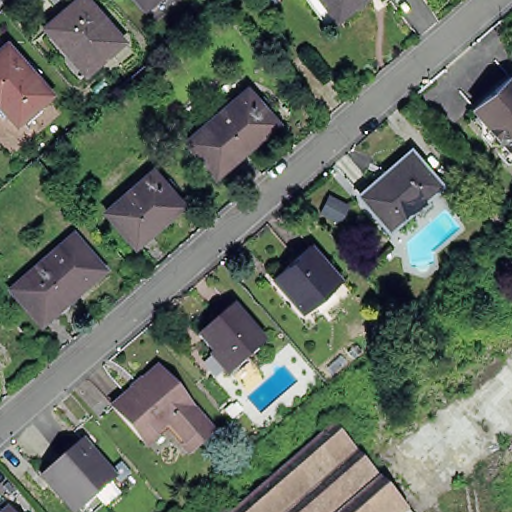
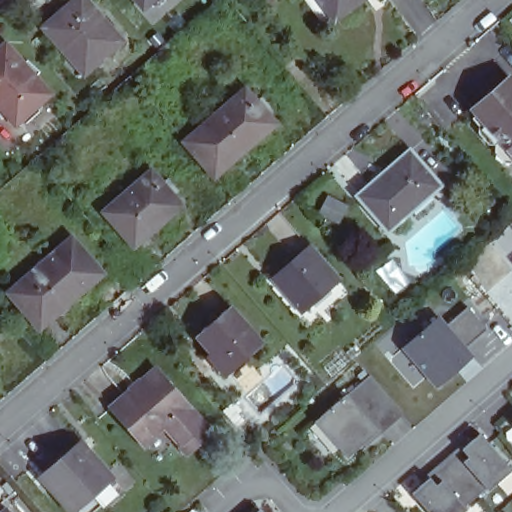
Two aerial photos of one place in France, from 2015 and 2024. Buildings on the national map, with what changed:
unchanged [(44,27),(76,0),(86,0),(122,41),(87,71),(72,54),(70,56),(44,27)]
unchanged [(137,0),(152,0),(143,7),(137,0)]
unchanged [(352,0),(339,10),(329,17),(316,0),(352,0)]
unchanged [(51,99),(16,130),(0,111),(0,53),(6,48),(51,99)]
unchanged [(510,77),(512,79),(512,153),(473,109),(510,77)]
unchanged [(215,176),(185,142),(245,90),(275,122),(215,176)]
unchanged [(388,230),(358,196),(410,151),(440,185),(388,230)]
unchanged [(105,217),(152,176),(181,210),(134,251),(105,217)]
unchanged [(10,292),(72,238),(102,273),(40,327),(10,292)]
unchanged [(309,250),(340,285),(303,317),(273,283),(272,282),(309,250)]
new [(437,388),(400,347),(438,314),(448,324),(467,306),(487,328),(467,347),(475,356),(437,388)]
unchanged [(230,311),(263,348),(230,377),(212,357),(197,341),(230,311)]
demolished [(512,343),(512,435),(440,497),(394,445),(512,343)]
unchanged [(157,372),(212,437),(189,457),(166,430),(143,450),(111,412),(132,394),(140,387),(157,372)]
new [(382,433),(379,431),(347,459),(315,422),(347,393),(370,374),(405,413),(382,433)]
demolished [(408,395),(408,396),(414,402),(381,431),(375,423),(407,396),(408,395)]
demolished [(330,431),(332,430),(333,432),(354,457),(355,457),(356,458),(355,458),(377,482),(379,484),(378,485),(402,512),(237,512),(330,432),(330,431)]
new [(512,468),(512,471),(480,499),(447,462),(480,432),(512,468)]
unchanged [(60,463),(80,446),(112,481),(103,490),(105,491),(93,501),(60,463)]
new [(412,492),(447,462),(480,499),(465,512),(429,512),(412,492)]
unchanged [(82,511),(81,508),(77,512),(67,512),(40,481),(60,463),(93,501),(82,511)]
demolished [(222,509),(225,512),(218,512),(222,509)]
new [(260,510),(262,512),(257,512),(260,510)]

